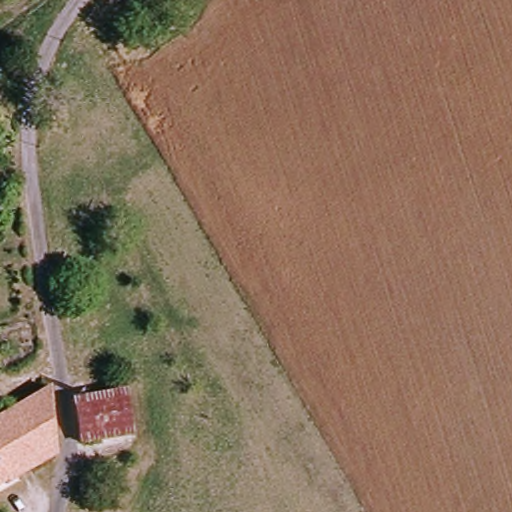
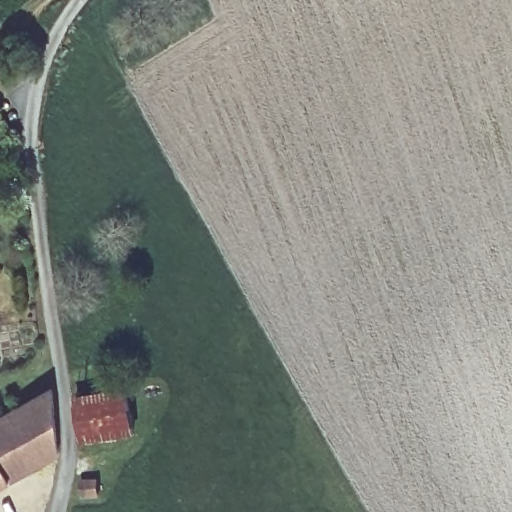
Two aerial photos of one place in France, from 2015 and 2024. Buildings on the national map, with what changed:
unchanged [(27,55),(19,45),(27,38),(35,48),(27,55)]
unchanged [(63,459),(0,493),(0,427),(58,395),(63,459)]
unchanged [(82,440),(76,402),(125,395),(131,434),(107,437),(82,440)]
unchanged [(96,486),(97,500),(82,502),(81,488),(96,486)]

